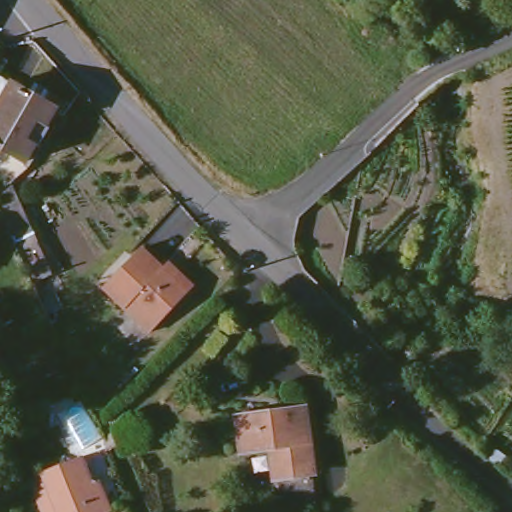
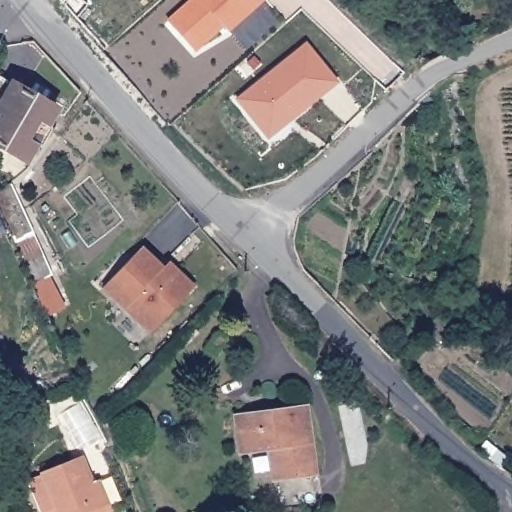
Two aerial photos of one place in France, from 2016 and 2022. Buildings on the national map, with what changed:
new [(165,23),(191,0),(254,0),(255,1),(223,30),(218,25),(190,50),(165,23)]
new [(265,134),(236,100),(289,55),(302,43),(307,48),(334,80),(290,117),(267,137),(265,134)]
unchanged [(3,144),(0,150),(0,93),(9,76),(77,114),(47,167),(3,144)]
unchanged [(15,237),(2,203),(14,186),(32,227),(15,237)]
unchanged [(100,283),(140,242),(160,263),(165,257),(192,282),(185,287),(147,327),(100,283)]
unchanged [(202,351),(215,334),(223,340),(209,357),(202,351)]
unchanged [(35,422),(34,395),(49,396),(48,422),(35,422)]
unchanged [(278,502),(274,472),(280,472),(275,442),(247,445),(242,413),(304,404),(318,498),(278,502)]
unchanged [(103,512),(52,512),(40,471),(79,458),(89,488),(95,486),(103,512)]

